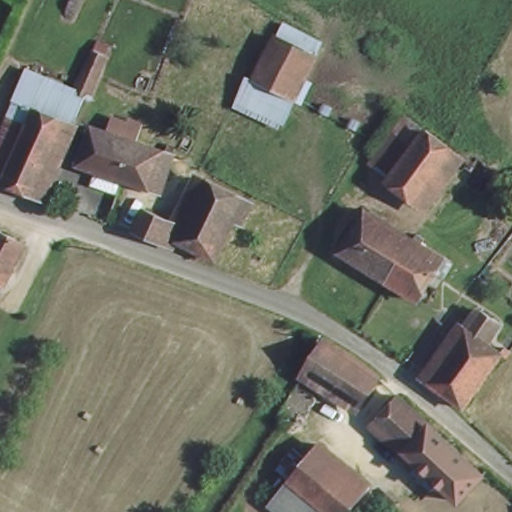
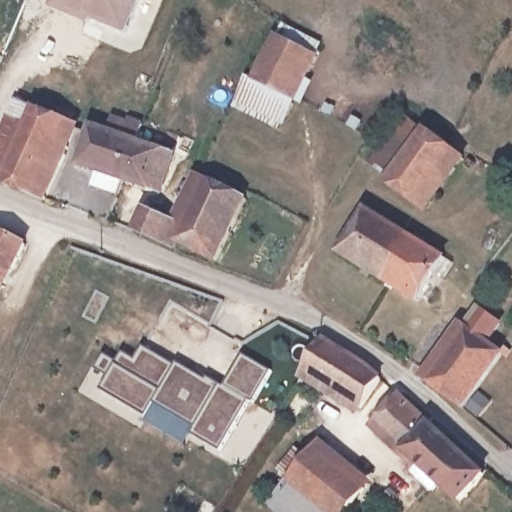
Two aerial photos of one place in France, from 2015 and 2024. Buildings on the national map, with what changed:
new [(144,0),(128,38),(90,26),(51,10),(55,0),(144,0)]
unchanged [(235,107),(243,78),(249,82),(277,34),(322,56),(287,124),(235,107)]
unchanged [(113,56),(97,90),(87,85),(103,50),(113,56)]
unchanged [(2,182),(9,171),(0,167),(0,131),(28,66),(91,96),(45,203),(2,182)]
unchanged [(388,185),(364,168),(402,114),(421,126),(425,119),(472,155),(427,213),(388,185)]
unchanged [(105,184),(112,166),(83,156),(94,126),(147,145),(137,175),(130,192),(105,184)]
unchanged [(147,145),(182,157),(171,187),(137,175),(147,145)]
unchanged [(225,266),(190,249),(187,255),(151,242),(158,223),(193,236),(218,187),(253,205),(225,266)]
unchanged [(346,252),(372,212),(415,239),(388,279),(346,252)]
unchanged [(0,274),(0,231),(10,234),(30,242),(13,278),(0,274)]
unchanged [(415,239),(442,257),(418,297),(388,279),(415,239)]
unchanged [(435,384),(493,306),(510,319),(495,340),(508,354),(465,411),(435,384)]
unchanged [(365,399),(307,373),(327,342),(380,369),(365,399)]
new [(270,371),(252,402),(248,400),(219,449),(192,432),(184,444),(144,421),(147,415),(103,389),(110,377),(97,368),(105,355),(117,363),(123,353),(135,359),(143,346),(177,365),(178,363),(205,380),(207,376),(223,387),(242,355),(270,371)]
unchanged [(460,501),(374,425),(400,396),(487,474),(460,501)]
unchanged [(272,504),(318,430),(377,480),(350,512),(281,512),(272,504)]

